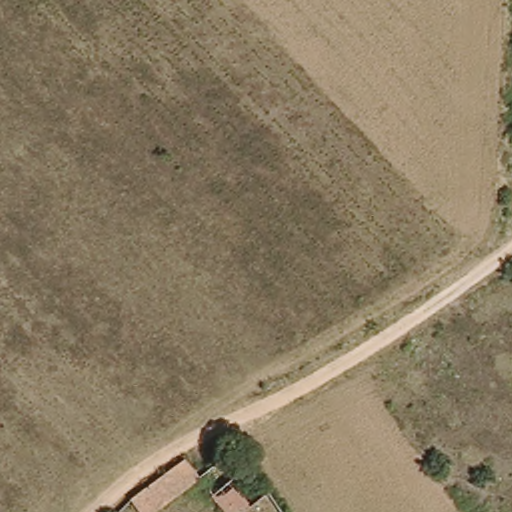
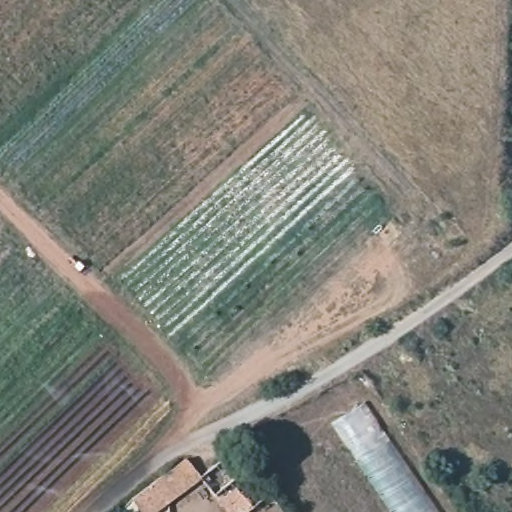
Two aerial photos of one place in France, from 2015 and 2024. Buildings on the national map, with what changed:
new [(395,512),(334,420),(365,398),(439,512),(395,512)]
unchanged [(224,453),(257,491),(237,512),(227,512),(193,479),(199,475),(224,453)]
unchanged [(193,479),(153,512),(140,512),(127,499),(144,487),(183,455),(199,475),(193,479)]

